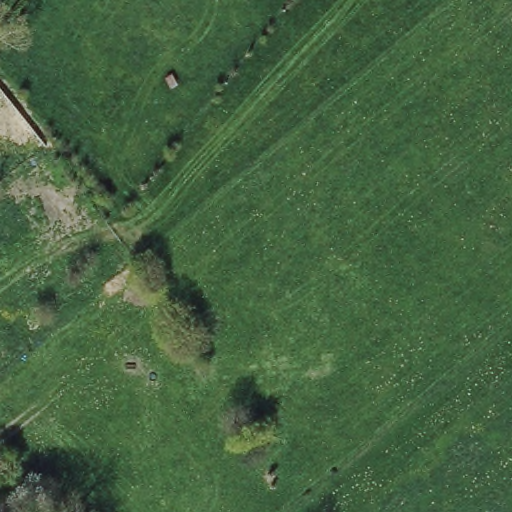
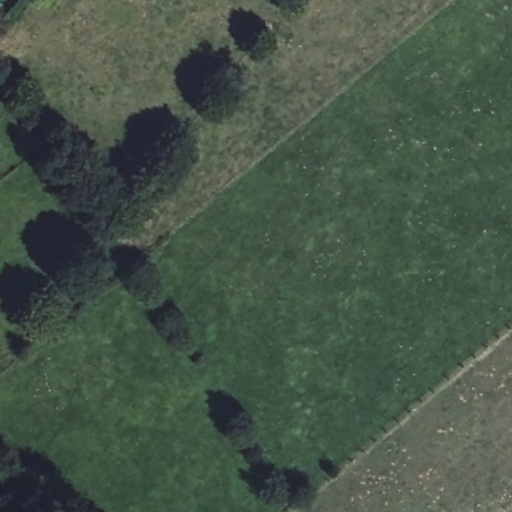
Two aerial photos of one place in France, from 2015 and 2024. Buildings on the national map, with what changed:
[]

